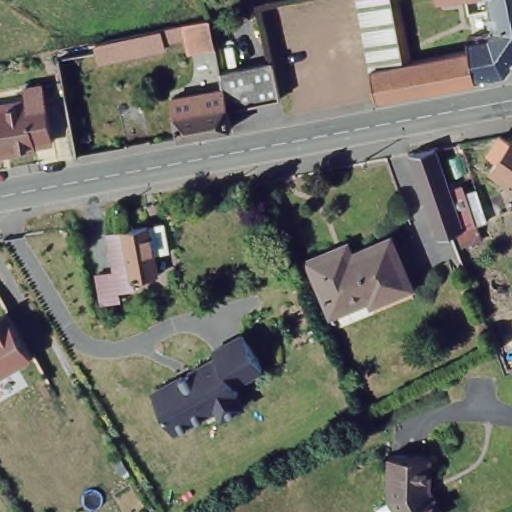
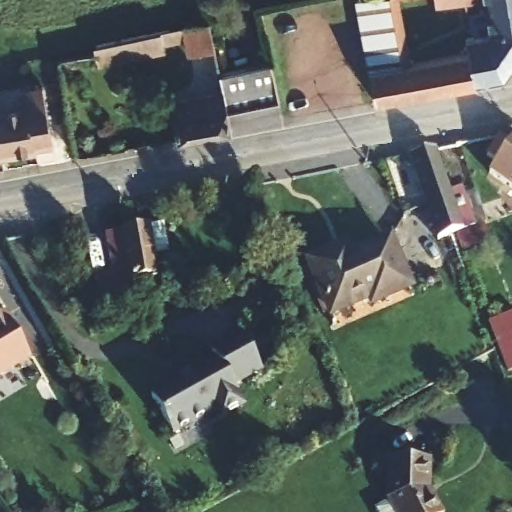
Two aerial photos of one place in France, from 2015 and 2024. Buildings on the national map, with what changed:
unchanged [(389,0),(401,64),(370,69),(357,0),(389,0)]
unchanged [(436,0),(454,0),(437,2),(436,0)]
unchanged [(487,0),(512,0),(512,68),(505,79),(476,82),(470,51),(467,37),(466,26),(491,22),(487,0)]
unchanged [(172,27),(185,25),(205,20),(211,19),(217,47),(190,52),(187,38),(165,43),(165,47),(98,62),(95,45),(162,30),(172,27)]
unchanged [(401,64),(470,51),(476,82),(376,102),(370,69),(401,64)]
unchanged [(267,60),(277,98),(225,111),(220,89),(216,72),(267,60)]
unchanged [(27,100),(25,87),(44,84),(52,141),(37,144),(36,147),(0,153),(0,104),(27,100)]
unchanged [(167,101),(220,89),(225,111),(227,128),(174,137),(167,101)]
unchanged [(500,140),(509,147),(512,142),(512,189),(490,175),(497,165),(487,158),(498,141),(500,140)]
unchanged [(434,147),(447,187),(459,183),(474,225),(450,232),(437,237),(408,153),(434,147)]
unchanged [(119,233),(122,232),(146,228),(162,225),(167,254),(160,255),(152,256),(155,277),(130,282),(132,292),(129,292),(117,295),(118,303),(101,306),(97,275),(112,272),(105,235),(119,233)]
unchanged [(307,259),(330,250),(346,244),(350,255),(389,238),(408,285),(332,317),(330,313),(323,316),(302,267),(310,265),(307,259)]
unchanged [(4,310),(30,353),(0,372),(0,312),(4,310)]
new [(486,322),(512,312),(512,370),(506,372),(486,322)]
unchanged [(218,361),(213,355),(247,335),(265,372),(236,388),(247,407),(224,422),(217,412),(174,432),(154,398),(218,361)]
unchanged [(376,507),(389,500),(387,496),(387,460),(427,459),(427,486),(442,512),(378,512),(376,507)]

